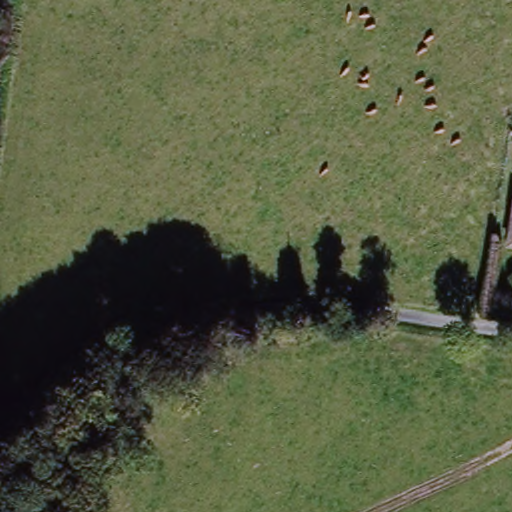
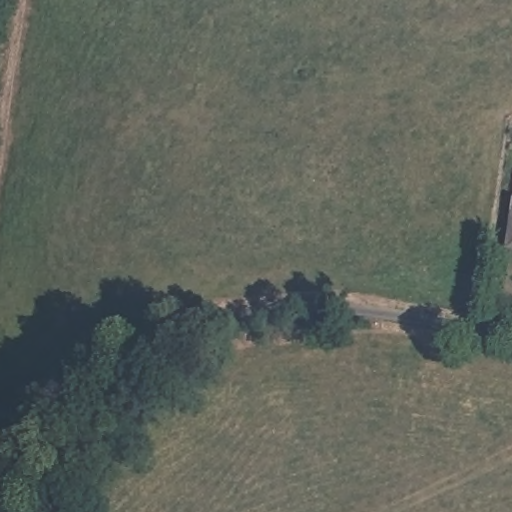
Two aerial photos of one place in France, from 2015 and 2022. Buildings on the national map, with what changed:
unchanged [(507,250),(512,207),(512,251),(507,250)]

